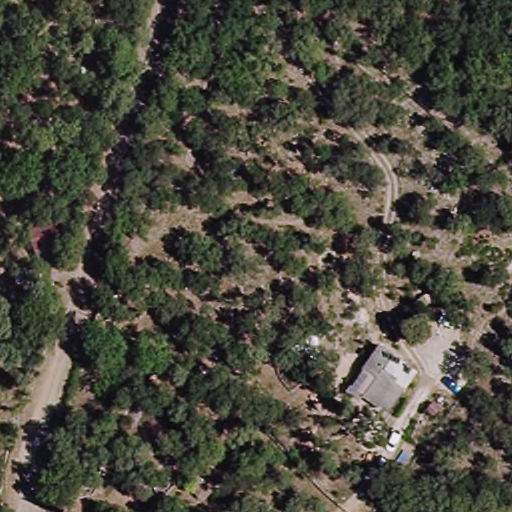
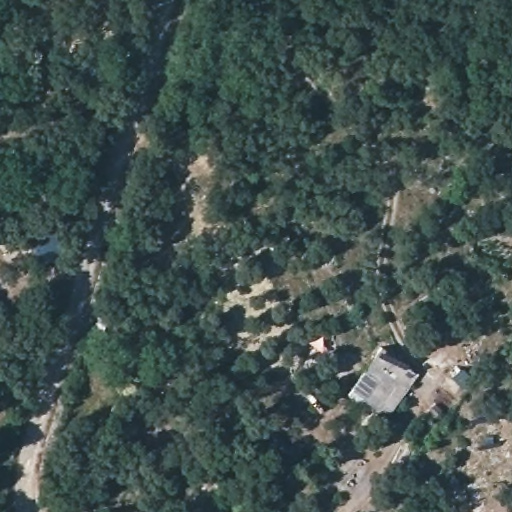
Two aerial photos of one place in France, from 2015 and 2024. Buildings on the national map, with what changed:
unchanged [(383,345),(409,366),(381,405),(353,391),(383,345)]

